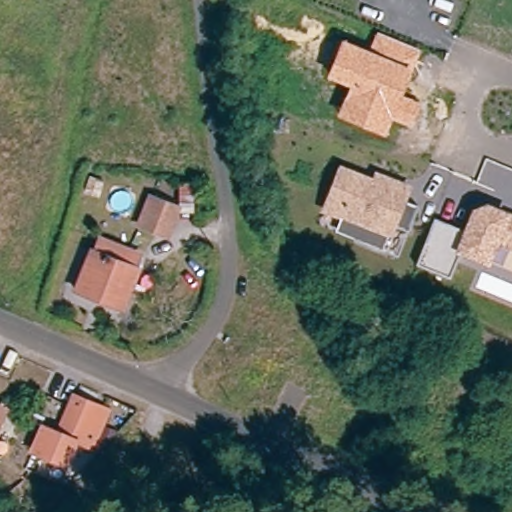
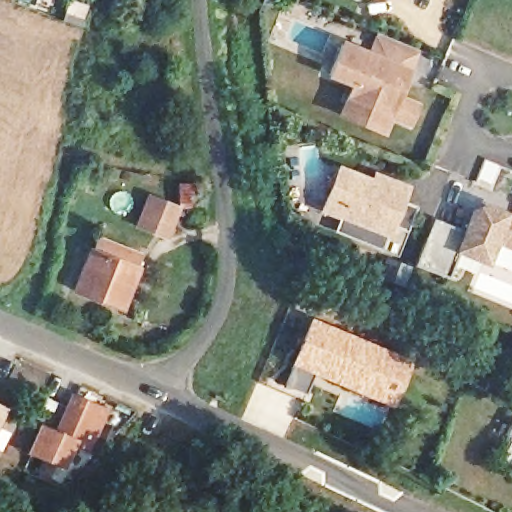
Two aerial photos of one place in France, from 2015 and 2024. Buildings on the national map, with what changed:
unchanged [(354,0),(361,0),(360,3),(354,0)]
unchanged [(372,51),(379,33),(420,51),(412,68),(401,96),(420,103),(411,126),(392,119),(386,136),(337,118),(350,87),(327,78),(342,40),(372,51)]
unchanged [(340,216),(323,210),(337,174),(340,169),(373,182),(376,175),(407,188),(402,201),(417,207),(407,233),(392,227),(382,251),(360,242),(333,231),(340,216)]
unchanged [(172,212),(162,240),(135,229),(146,201),(172,212)]
unchanged [(462,229),(471,209),(488,204),(510,212),(512,213),(512,249),(499,243),(490,267),(461,256),(451,278),(417,265),(435,218),(462,229)]
unchanged [(86,256),(89,257),(94,244),(137,260),(132,273),(135,275),(119,316),(70,296),(86,256)]
new [(309,316),(377,345),(412,362),(390,409),(312,376),(304,395),(282,386),(309,316)]
unchanged [(89,402),(88,404),(102,410),(87,445),(70,438),(59,462),(27,449),(38,422),(55,429),(70,394),(89,402)]
unchanged [(0,413),(0,411),(1,412),(0,413)]
new [(511,436),(512,434),(512,437),(511,436)]
new [(511,436),(512,437),(512,473),(495,463),(511,436)]

